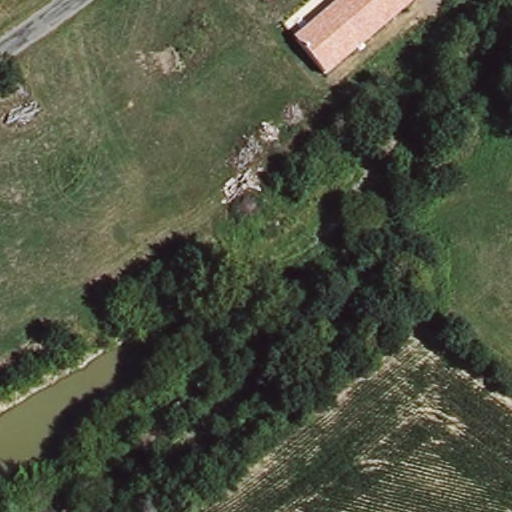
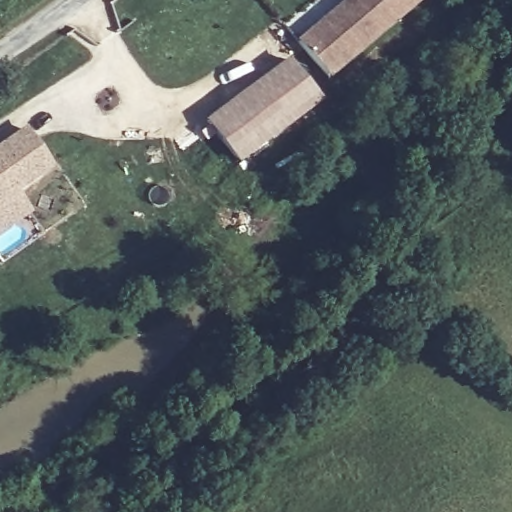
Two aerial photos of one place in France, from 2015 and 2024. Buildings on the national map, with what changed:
unchanged [(325,77),(294,40),(342,0),(419,0),(325,77)]
new [(290,58),(320,99),(239,160),(209,120),(290,58)]
new [(27,127),(52,163),(16,188),(0,199),(0,146),(27,127)]
new [(16,188),(30,209),(0,230),(0,199),(16,188)]

